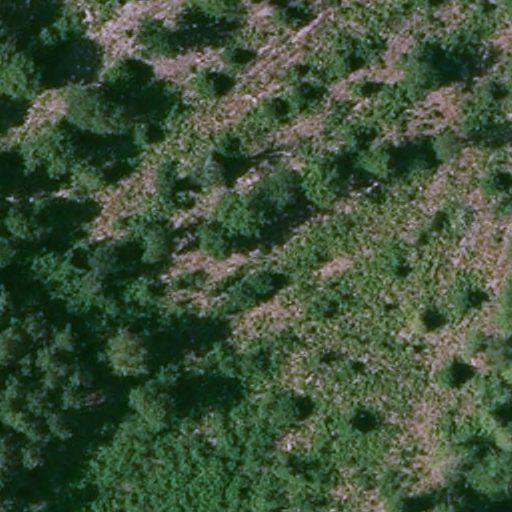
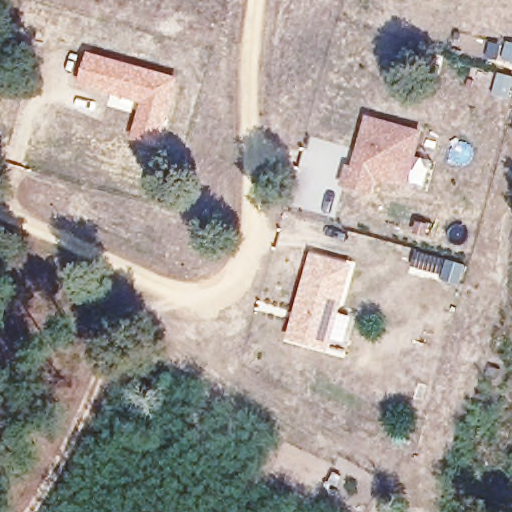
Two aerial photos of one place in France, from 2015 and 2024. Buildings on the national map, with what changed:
new [(86,51),(178,76),(158,147),(130,139),(140,103),(78,85),(86,51)]
new [(370,195),(340,187),(345,165),(352,166),(365,115),(421,131),(405,185),(374,179),(370,195)]
new [(306,347),(285,335),(308,253),(352,263),(329,350),(306,347)]

